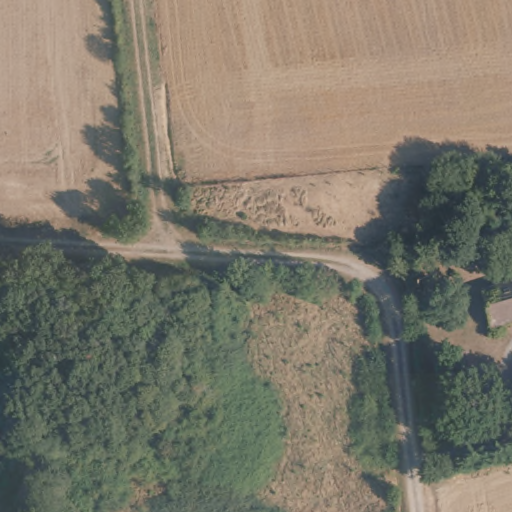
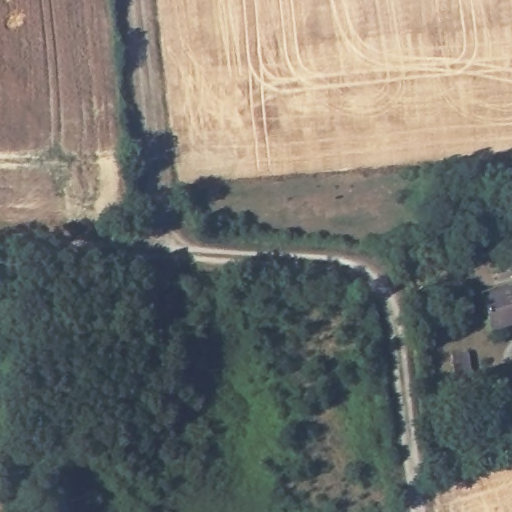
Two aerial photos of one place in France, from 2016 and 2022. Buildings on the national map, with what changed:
unchanged [(512,284),(512,327),(499,331),(488,290),(512,284)]
unchanged [(466,354),(470,373),(457,375),(453,356),(466,354)]

